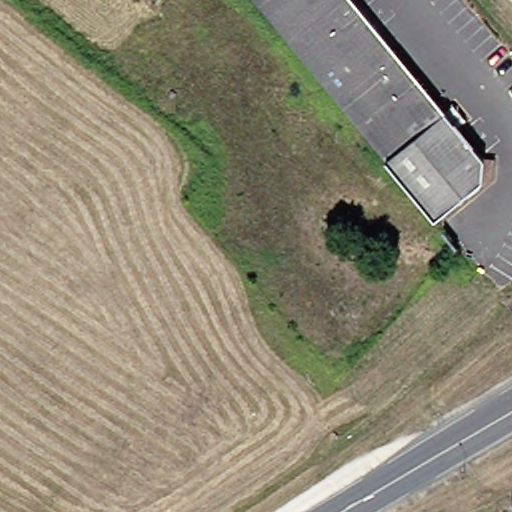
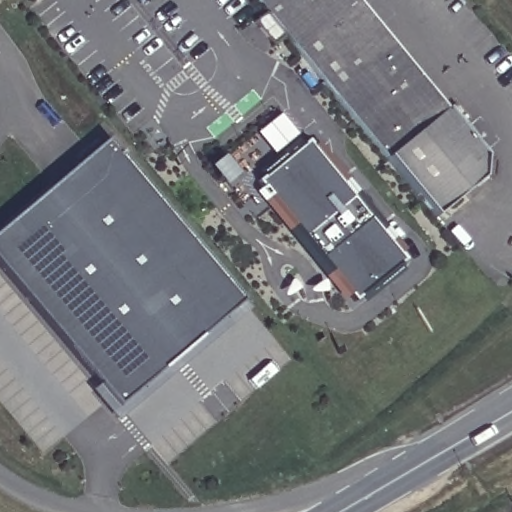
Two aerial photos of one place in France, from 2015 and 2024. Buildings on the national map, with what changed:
unchanged [(492,184),(445,222),(397,164),(262,0),(359,0),(455,116),(494,163),(503,164),(501,185),(492,184)]
new [(92,392),(100,386),(0,270),(0,230),(106,140),(242,302),(117,423),(92,392)]
new [(304,144),(340,188),(344,185),(352,195),(349,199),(379,236),(383,233),(389,241),(386,244),(402,264),(352,305),(254,185),(304,144)]

